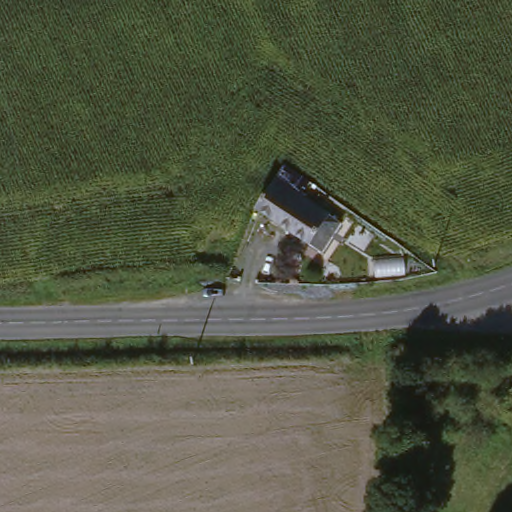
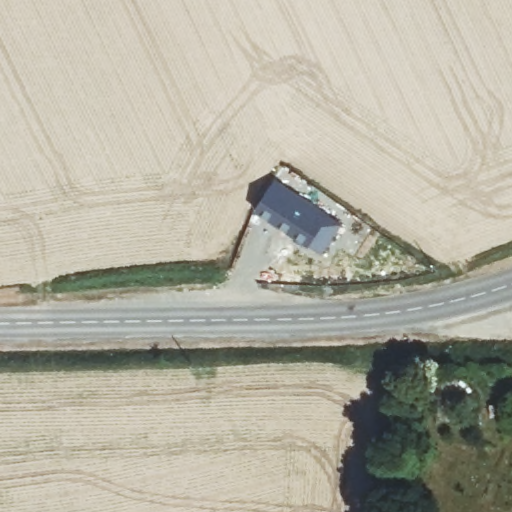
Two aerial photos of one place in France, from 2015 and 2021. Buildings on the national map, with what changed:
unchanged [(339,223),(318,253),(252,212),(273,179),(339,223)]

